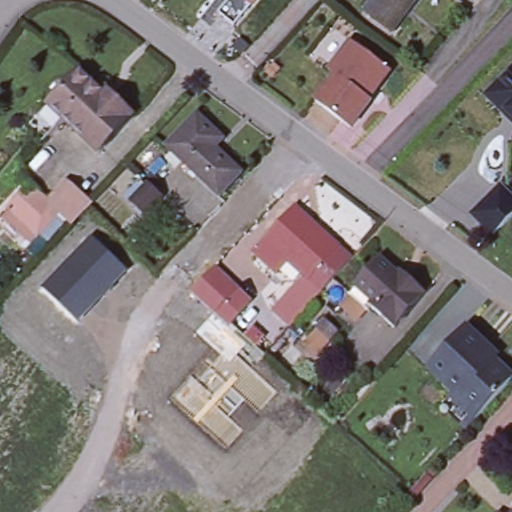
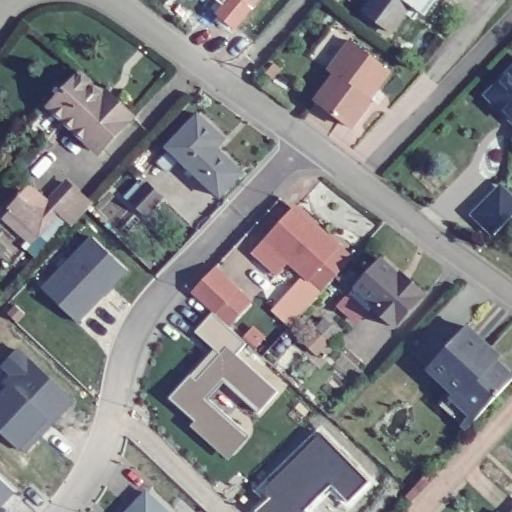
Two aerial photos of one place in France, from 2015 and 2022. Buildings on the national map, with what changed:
unchanged [(248,0),(254,0),(251,3),(248,0)]
unchanged [(370,0),(415,0),(393,29),(363,8),(370,0)]
unchanged [(331,70),(352,42),(387,68),(367,96),(372,100),(352,127),(317,100),(337,75),(331,70)]
unchanged [(488,91),(512,68),(512,123),(488,101),(488,91)]
unchanged [(108,91),(120,101),(134,114),(99,151),(60,115),(50,106),(82,73),(92,81),(105,94),(108,91)]
unchanged [(200,115),(225,140),(218,148),(243,173),(220,197),(168,148),(200,115)]
unchanged [(67,179),(76,188),(90,202),(88,204),(72,221),(49,247),(43,242),(5,208),(31,182),(49,198),(67,179)]
unchanged [(165,200),(149,217),(135,204),(152,186),(165,200)]
unchanged [(505,190),(512,198),(512,214),(493,233),(473,213),(496,190),(505,190)]
unchanged [(308,279),(290,263),(280,274),(255,251),(265,239),(293,210),(297,207),(317,225),(341,248),(354,259),(323,293),(292,327),(273,310),(302,280),(308,279)]
unchanged [(42,289),(92,237),(127,272),(77,323),(42,289)]
unchanged [(339,302),(350,292),(357,284),(382,258),(397,272),(396,277),(407,288),(415,289),(425,298),(396,328),(373,308),(370,311),(360,322),(339,302)]
unchanged [(257,299),(232,327),(192,292),(217,264),(257,299)]
unchanged [(332,310),(343,320),(334,329),(323,319),(332,310)]
new [(190,426),(195,421),(169,399),(190,376),(215,349),(196,332),(212,314),(245,344),(235,354),(277,391),(258,412),(224,381),(208,399),(250,437),(228,460),(190,426)]
unchanged [(430,369),(467,329),(492,352),(487,356),(512,378),(512,381),(477,419),(467,430),(441,407),(455,392),(430,369)]
new [(7,364),(20,351),(73,401),(25,450),(0,426),(0,362),(2,359),(7,364)]
new [(320,434),(367,482),(347,504),(332,486),(307,512),(257,512),(270,499),(263,491),(320,434)]
unchanged [(0,507),(0,476),(15,491),(0,507)]
new [(147,489),(171,512),(125,512),(147,489)]
unchanged [(512,505),(512,512),(506,512),(512,505)]
unchanged [(495,509),(498,512),(492,512),(495,509)]

